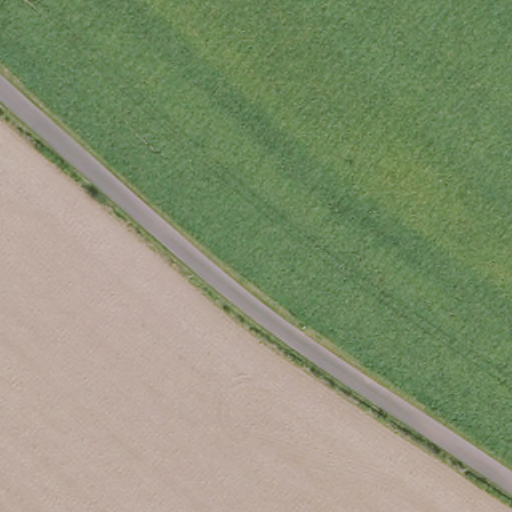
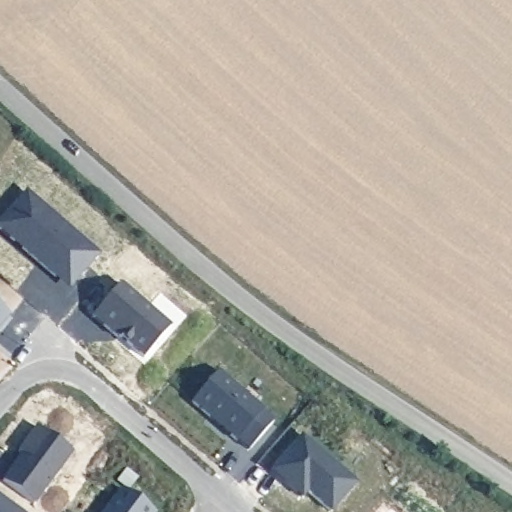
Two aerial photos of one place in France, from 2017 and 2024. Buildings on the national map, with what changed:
new [(68,288),(0,230),(0,223),(26,190),(100,254),(68,288)]
new [(120,338),(117,341),(91,318),(121,283),(171,327),(142,360),(120,338)]
new [(9,314),(0,325),(0,307),(9,314)]
new [(263,410),(262,411),(274,421),(250,449),(238,439),(237,440),(192,401),(218,371),(263,410)]
new [(70,452),(32,504),(1,481),(28,445),(20,455),(16,453),(25,442),(35,427),(70,452)]
new [(356,484),(330,508),(310,487),(300,497),(271,471),(301,436),(356,484)]
new [(152,512),(103,512),(120,488),(152,512)]
new [(18,512),(0,512),(0,498),(18,512)]

